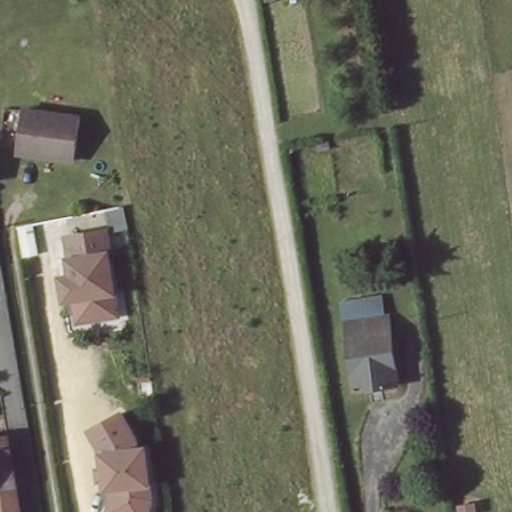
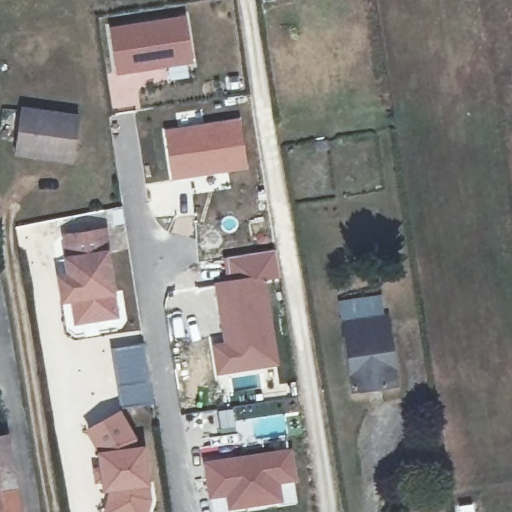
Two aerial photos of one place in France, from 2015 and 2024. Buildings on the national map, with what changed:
new [(187,14),(194,63),(187,65),(189,77),(167,81),(166,69),(117,76),(109,26),(187,14)]
unchanged [(77,120),(71,164),(12,156),(18,113),(77,120)]
new [(241,117),(249,170),(170,182),(162,129),(241,117)]
unchanged [(60,285),(69,283),(66,266),(68,266),(64,243),(104,236),(108,260),(106,260),(117,322),(77,329),(73,305),(63,307),(60,285)]
new [(276,249),(280,279),(267,281),(264,281),(263,278),(227,279),(225,258),(276,249)]
new [(222,340),(213,282),(227,279),(263,278),(264,281),(267,281),(280,366),(216,376),(211,342),(222,340)]
unchanged [(382,311),(392,383),(347,388),(336,318),(382,311)]
new [(144,342),(154,403),(120,407),(111,348),(144,342)]
unchanged [(120,415),(137,446),(148,447),(150,485),(147,512),(102,512),(107,497),(103,498),(94,456),(83,434),(120,415)]
unchanged [(2,433),(17,512),(0,512),(0,433),(2,433)]
new [(293,447),(298,483),(283,485),(286,504),(234,512),(212,512),(203,460),(293,447)]

